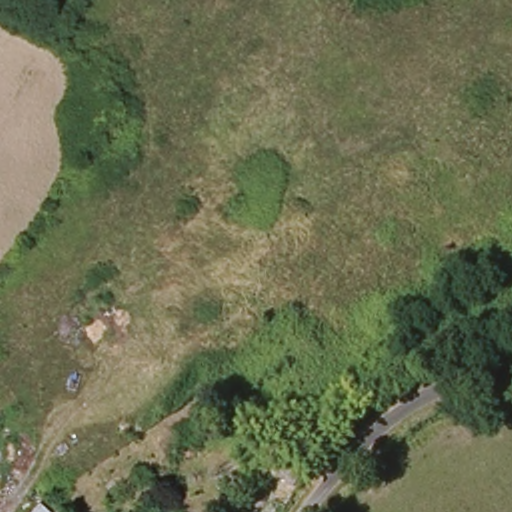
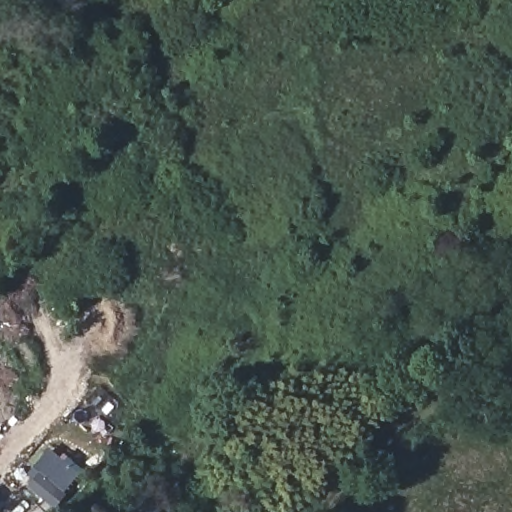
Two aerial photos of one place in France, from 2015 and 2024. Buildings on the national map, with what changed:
new [(32,466),(27,461),(44,443),(82,474),(54,508),(27,485),(32,479),(26,474),(32,466)]

